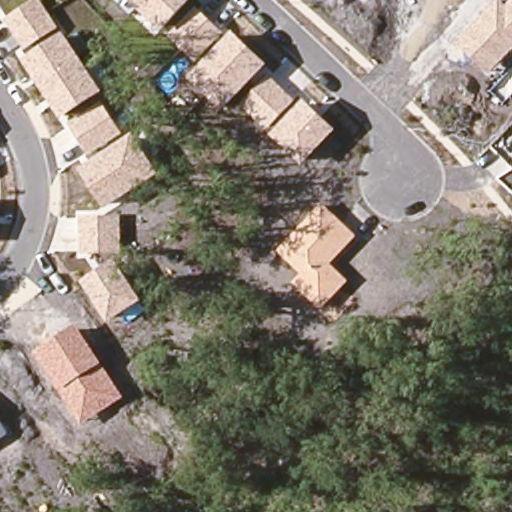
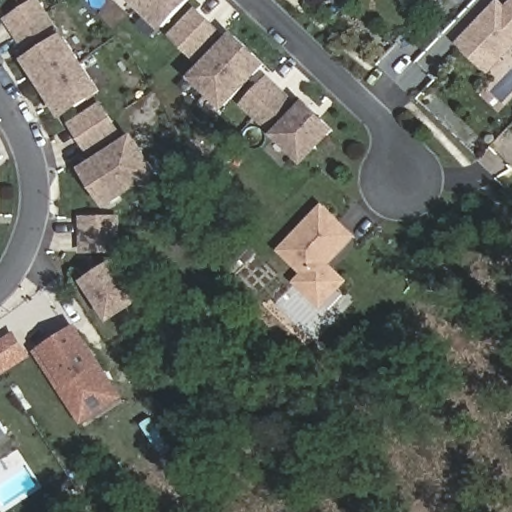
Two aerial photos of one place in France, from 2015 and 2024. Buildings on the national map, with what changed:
unchanged [(25,49),(7,18),(36,0),(44,0),(61,28),(25,49)]
unchanged [(168,30),(164,34),(128,0),(196,0),(194,1),(225,31),(197,60),(168,30)]
unchanged [(456,43),(498,0),(501,0),(506,5),(511,0),(512,0),(512,53),(491,75),(456,43)]
unchanged [(103,91),(62,116),(25,56),(67,31),(103,91)]
unchanged [(267,130),(234,101),(222,114),(188,80),(236,33),(270,67),(265,71),(298,100),(267,130)]
unchanged [(304,165),(272,134),(308,98),(340,129),(304,165)]
unchanged [(89,154),(68,119),(102,99),(123,134),(89,154)]
unchanged [(103,208),(79,168),(136,133),(162,172),(103,208)]
unchanged [(335,263),(353,281),(325,309),(293,281),(303,270),(282,250),(325,203),(359,235),(335,263)]
unchanged [(123,250),(82,252),(80,217),(123,215),(123,250)]
unchanged [(108,323),(82,281),(117,257),(144,299),(108,323)]
unchanged [(82,424),(35,352),(81,323),(127,396),(82,424)]
new [(14,334),(25,352),(0,368),(0,367),(0,344),(14,334)]
unchanged [(0,439),(0,413),(12,432),(0,439)]

